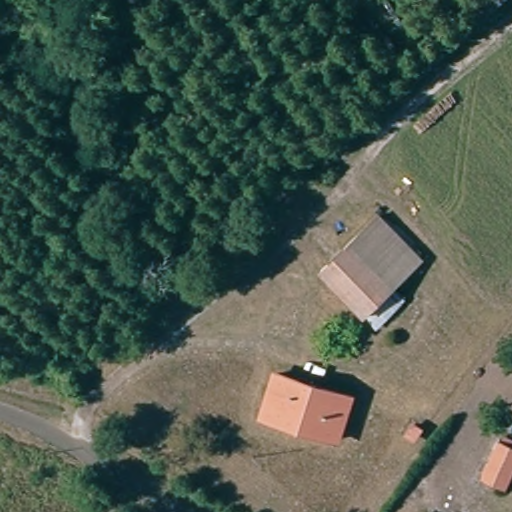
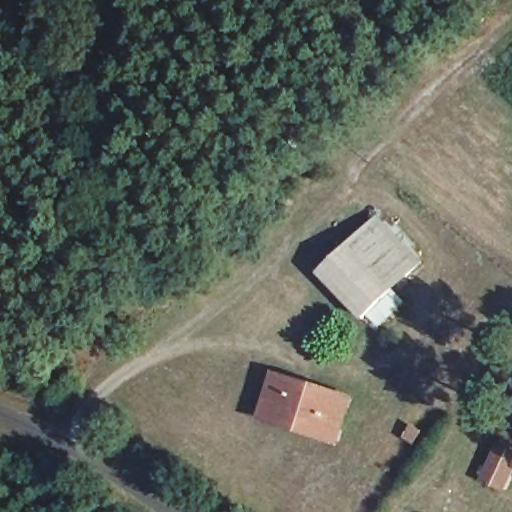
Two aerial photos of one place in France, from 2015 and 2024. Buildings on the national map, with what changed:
unchanged [(383,226),(421,279),(356,327),(317,273),(358,244),(383,226)]
unchanged [(337,396),(325,438),(270,420),(283,379),(337,396)]
unchanged [(512,444),(512,483),(507,494),(480,482),(500,439),(512,444)]

